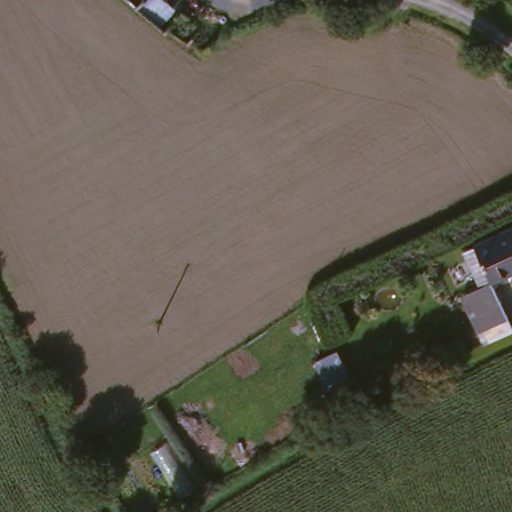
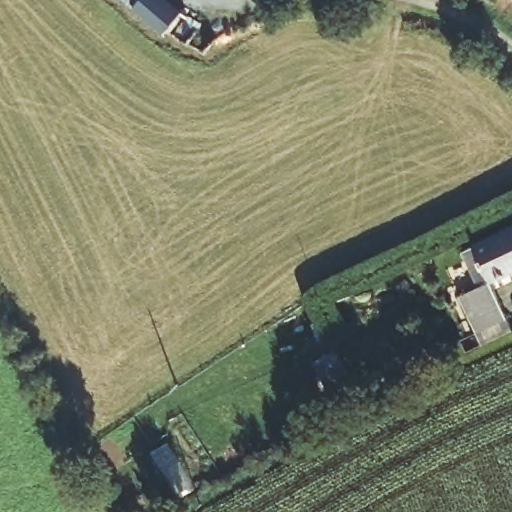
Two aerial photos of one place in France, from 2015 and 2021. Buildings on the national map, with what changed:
unchanged [(115,0),(116,0),(116,1),(115,0)]
unchanged [(463,251),(512,227),(512,272),(480,287),(463,251)]
unchanged [(497,323),(468,338),(451,301),(480,287),(497,323)]
unchanged [(416,360),(454,342),(459,354),(421,371),(416,360)]
unchanged [(347,392),(323,404),(308,367),(330,356),(347,392)]
unchanged [(373,393),(359,399),(353,389),(368,382),(373,393)]

